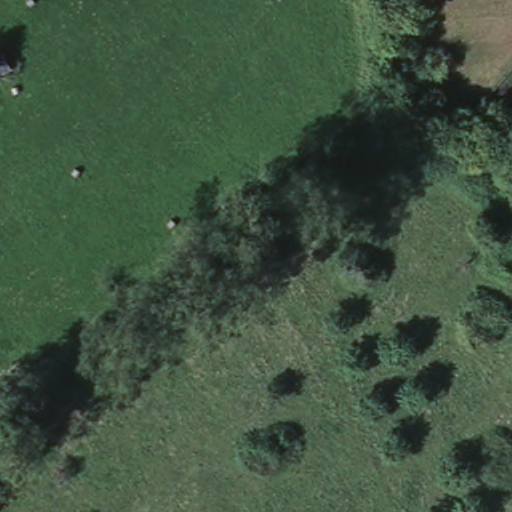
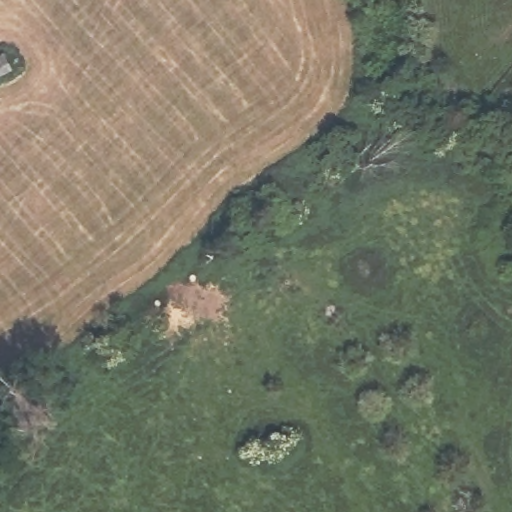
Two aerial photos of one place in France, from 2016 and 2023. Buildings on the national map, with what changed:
unchanged [(0,72),(0,58),(6,69),(0,72)]

